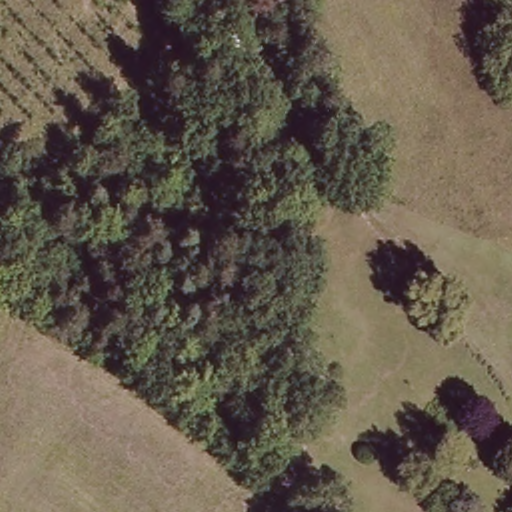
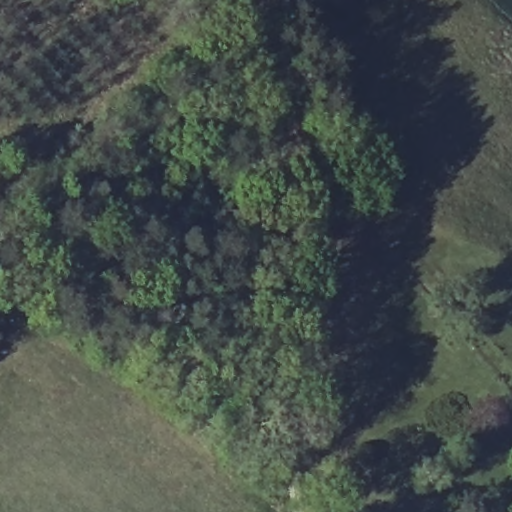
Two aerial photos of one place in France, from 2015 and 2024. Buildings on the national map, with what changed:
[]

